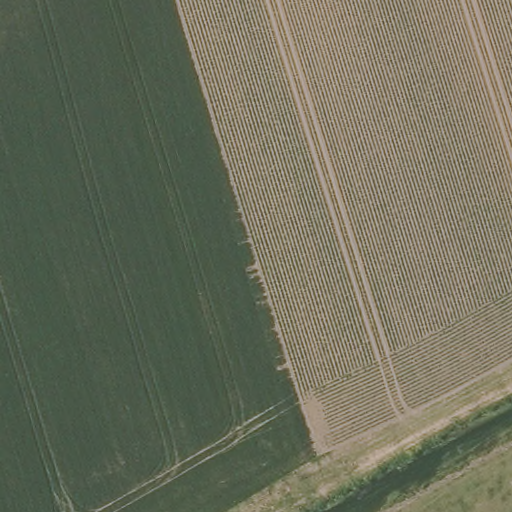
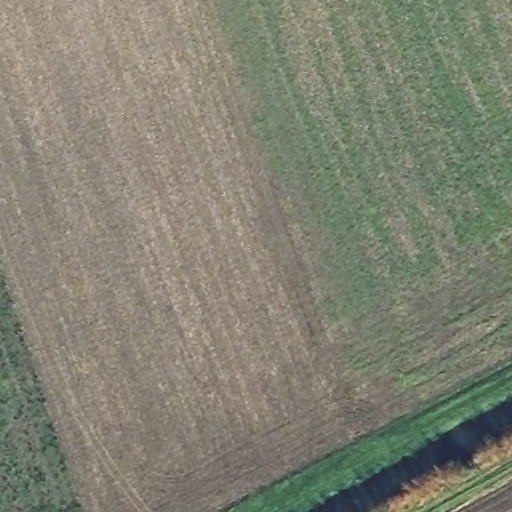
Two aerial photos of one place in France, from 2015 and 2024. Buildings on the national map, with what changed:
[]

